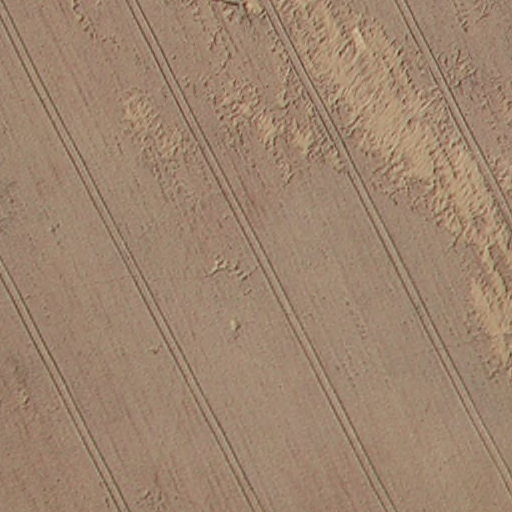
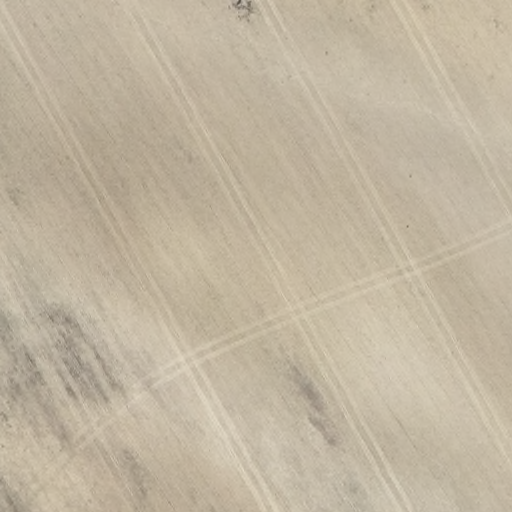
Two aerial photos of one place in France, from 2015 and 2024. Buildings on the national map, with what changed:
[]

